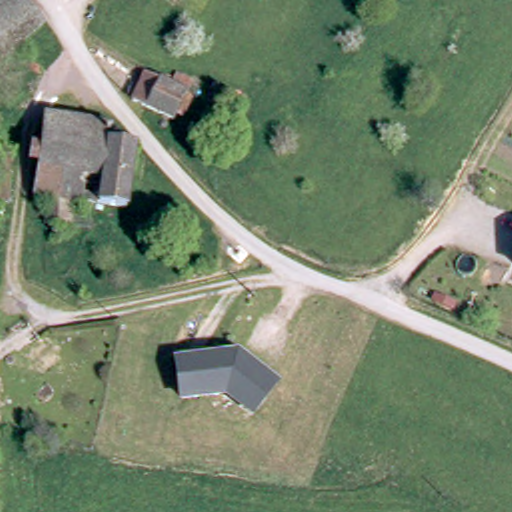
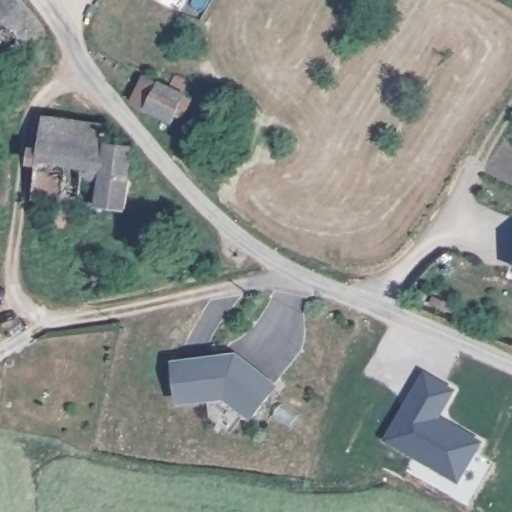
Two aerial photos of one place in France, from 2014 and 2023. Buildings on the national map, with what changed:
unchanged [(0,59),(0,0),(24,0),(44,24),(16,47),(0,59)]
unchanged [(164,82),(169,84),(184,93),(165,129),(129,96),(143,70),(164,82)]
unchanged [(41,225),(45,197),(29,195),(42,117),(107,127),(107,143),(131,147),(122,211),(67,201),(62,228),(41,225)]
unchanged [(237,352),(279,385),(251,419),(224,398),(178,404),(172,360),(237,352)]
new [(424,373),(454,390),(439,417),(449,422),(447,425),(455,429),(456,427),(480,441),(458,481),(386,440),(424,373)]

